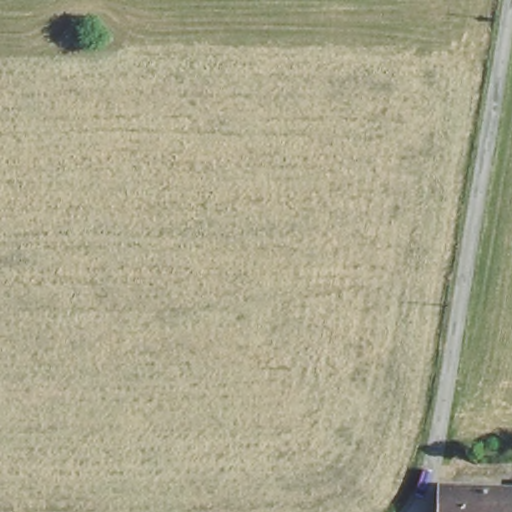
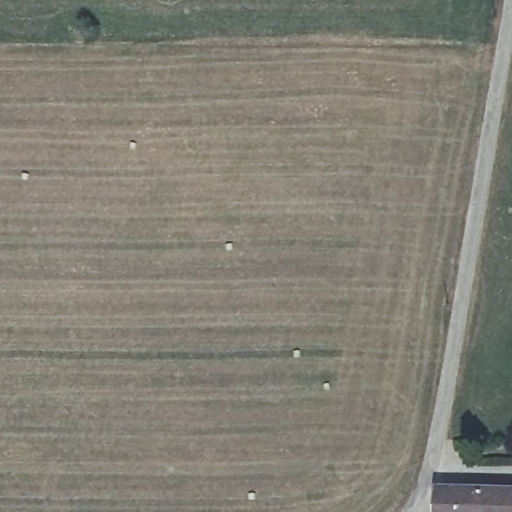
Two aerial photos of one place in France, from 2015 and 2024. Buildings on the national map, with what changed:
unchanged [(436,508),(440,489),(512,499),(512,512),(435,512),(436,508)]

